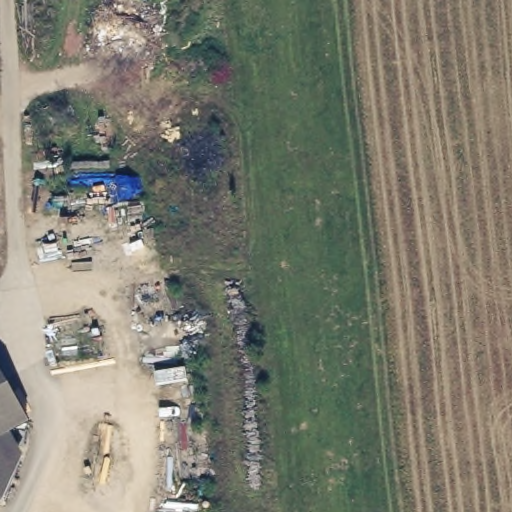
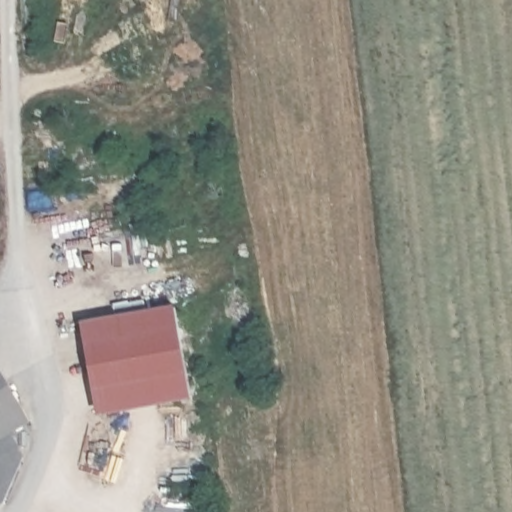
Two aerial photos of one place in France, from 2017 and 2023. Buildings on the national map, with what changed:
new [(96,415),(80,323),(173,307),(191,399),(96,415)]
unchanged [(21,420),(0,433),(0,384),(21,420)]
new [(5,506),(0,509),(0,433),(8,428),(25,458),(5,506)]

